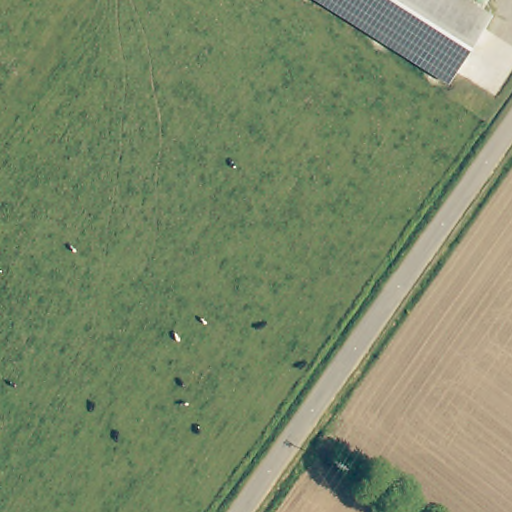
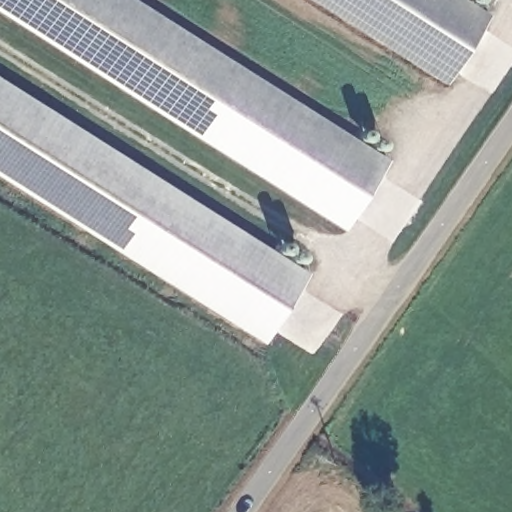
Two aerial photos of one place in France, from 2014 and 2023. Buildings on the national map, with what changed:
new [(344,230),(0,12),(0,0),(134,0),(388,161),(344,230)]
unchanged [(313,0),(466,0),(493,17),(449,86),(313,0)]
new [(264,344),(0,177),(0,78),(309,275),(264,344)]

